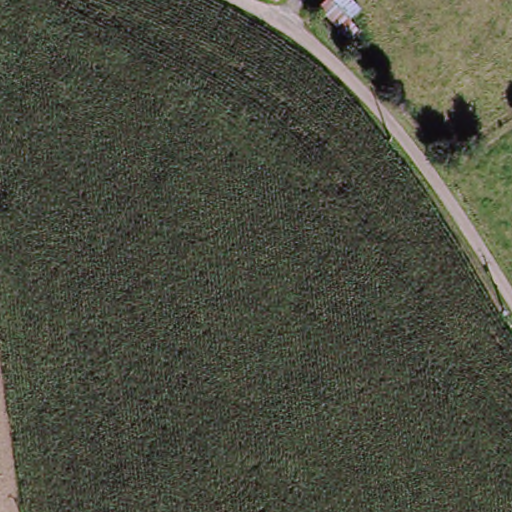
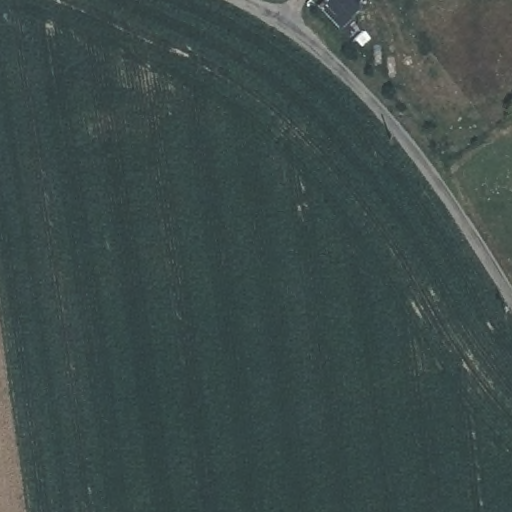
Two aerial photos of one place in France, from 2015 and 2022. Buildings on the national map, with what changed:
[]

